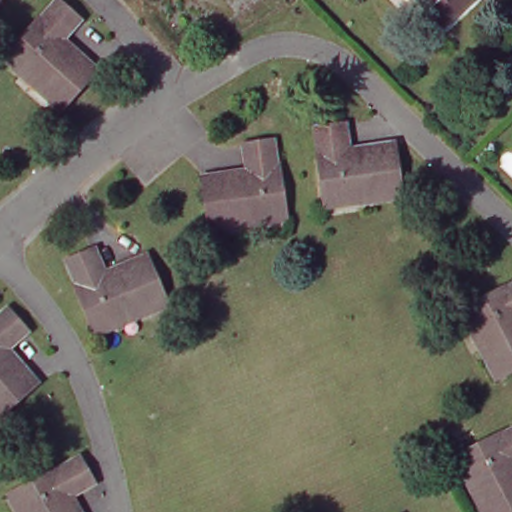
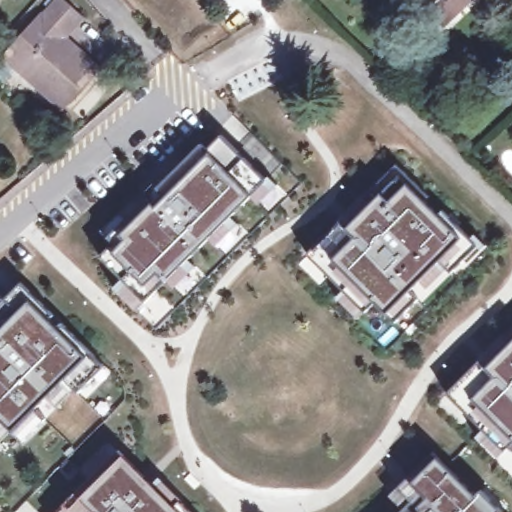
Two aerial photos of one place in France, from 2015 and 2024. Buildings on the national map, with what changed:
unchanged [(450,26),(425,0),(477,0),(450,26)]
unchanged [(26,72),(13,59),(44,24),(45,26),(66,2),(85,18),(65,41),(71,46),(73,44),(100,70),(70,105),(29,68),(26,72)]
demolished [(362,151),(399,146),(408,193),(353,201),(353,204),(333,207),(327,160),(329,160),(325,128),(349,124),(354,154),(362,153),(362,151)]
demolished [(216,224),(209,178),(250,172),(250,173),(256,172),(253,144),(276,141),(281,173),(284,172),(291,218),(273,220),(272,216),(216,224)]
new [(126,240),(121,235),(153,204),(156,208),(209,154),(249,196),(164,279),(158,273),(146,284),(113,252),(126,240)]
new [(387,171),(395,179),(396,176),(406,186),(461,238),(387,313),(371,298),(361,309),(306,254),(387,171)]
demolished [(117,272),(153,257),(171,301),(120,322),(122,326),(104,334),(85,290),(88,289),(76,259),(98,249),(110,277),(118,274),(117,272)]
new [(21,284),(53,315),(49,321),(58,330),(63,326),(103,367),(78,393),(64,380),(34,410),(44,419),(23,441),(12,431),(0,443),(0,305),(5,300),(21,284)]
demolished [(477,328),(468,311),(510,290),(511,291),(512,291),(512,371),(506,375),(480,327),(477,328)]
demolished [(32,328),(9,348),(13,353),(15,352),(41,382),(5,413),(0,406),(0,322),(15,309),(32,328)]
new [(447,395),(479,361),(486,369),(509,345),(505,338),(512,330),(512,440),(502,450),(447,395)]
demolished [(461,459),(503,437),(504,440),(512,435),(512,512),(493,512),(473,474),(469,476),(461,459)]
new [(117,452),(123,459),(173,507),(179,503),(187,512),(58,512),(65,505),(117,452)]
new [(398,489),(433,453),(437,458),(476,496),(482,491),(501,512),(402,512),(412,503),(398,489)]
demolished [(16,496),(57,473),(58,475),(86,458),(99,480),(73,495),(77,502),(78,501),(84,512),(29,512),(28,511),(25,512),(16,496)]

